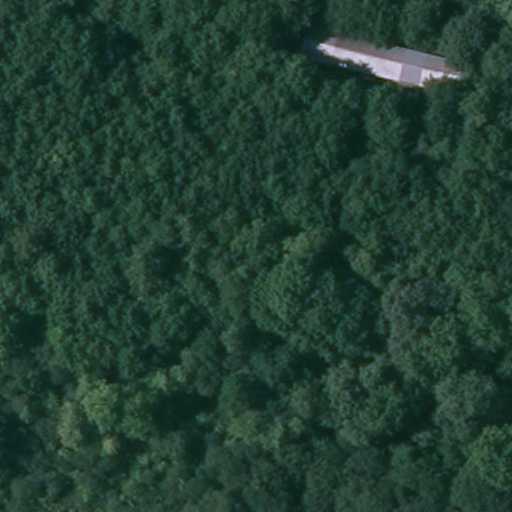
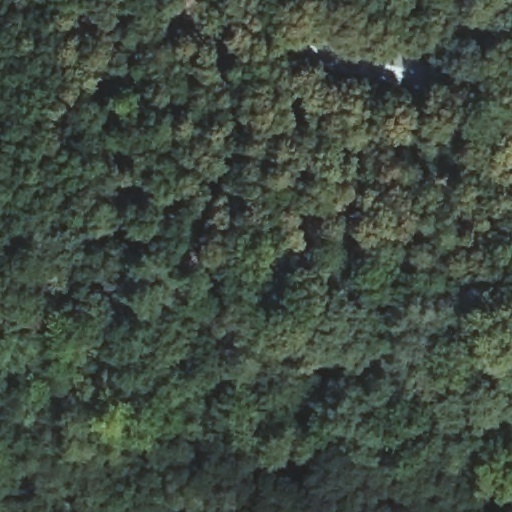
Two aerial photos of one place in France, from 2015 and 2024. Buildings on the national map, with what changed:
unchanged [(302,64),(311,28),(472,67),(462,102),(302,64)]

